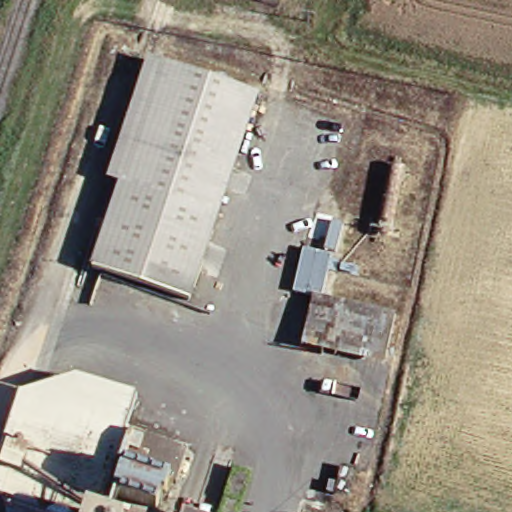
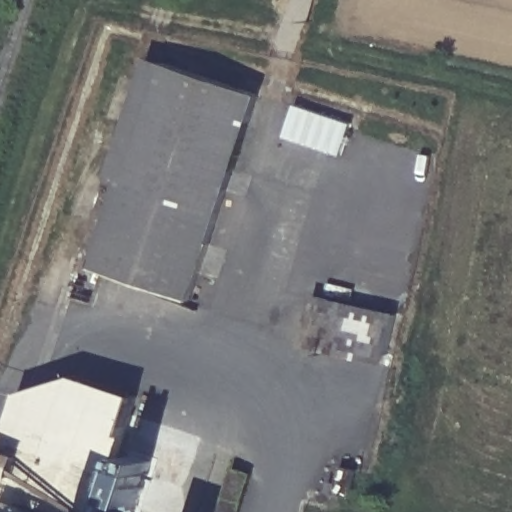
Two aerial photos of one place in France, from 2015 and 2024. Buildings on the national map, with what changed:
unchanged [(184,301),(86,269),(155,62),(252,94),(184,301)]
new [(283,137),(294,106),(351,124),(340,156),(283,137)]
unchanged [(307,297),(288,292),(298,249),(327,256),(317,299),(307,297)]
unchanged [(378,365),(296,346),(307,297),(317,299),(390,316),(378,365)]
unchanged [(0,439),(14,393),(72,377),(132,397),(121,430),(93,512),(38,512),(0,499),(0,439)]
unchanged [(171,485),(169,485),(159,512),(146,512),(122,505),(119,512),(93,512),(121,430),(182,451),(171,485)]
unchanged [(348,497),(335,494),(341,467),(355,471),(348,497)]
unchanged [(220,512),(234,470),(250,475),(238,512),(220,512)]
unchanged [(146,512),(119,512),(122,505),(146,512)]
unchanged [(20,509),(24,510),(26,512),(7,512),(12,509),(20,509)]

